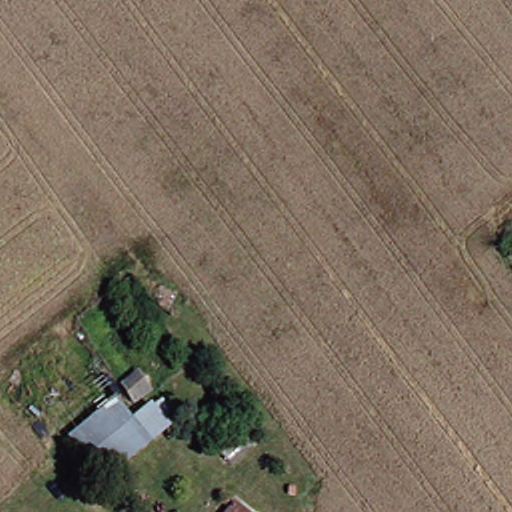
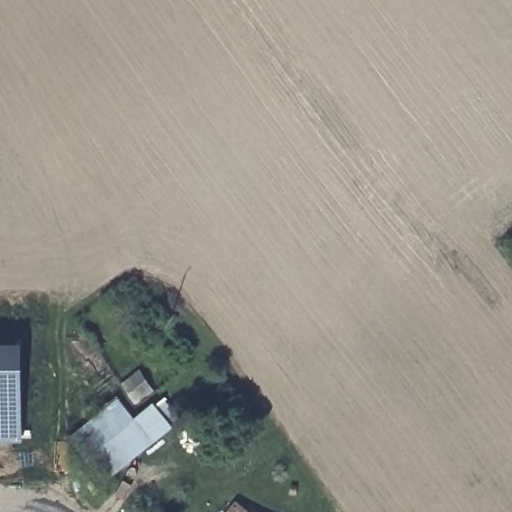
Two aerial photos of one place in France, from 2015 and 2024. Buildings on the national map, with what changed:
new [(0,445),(0,347),(20,347),(20,444),(0,445)]
unchanged [(167,426),(100,480),(83,460),(149,406),(167,426)]

